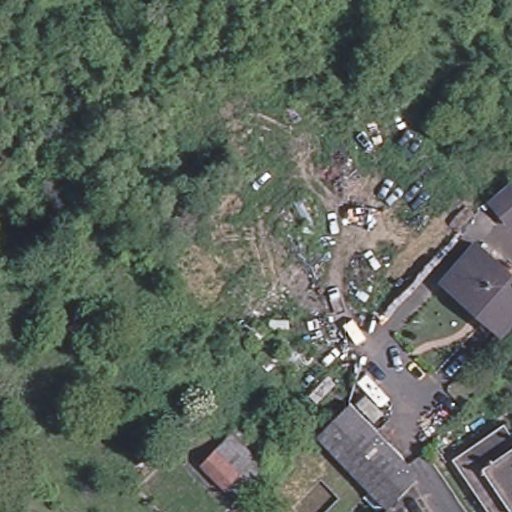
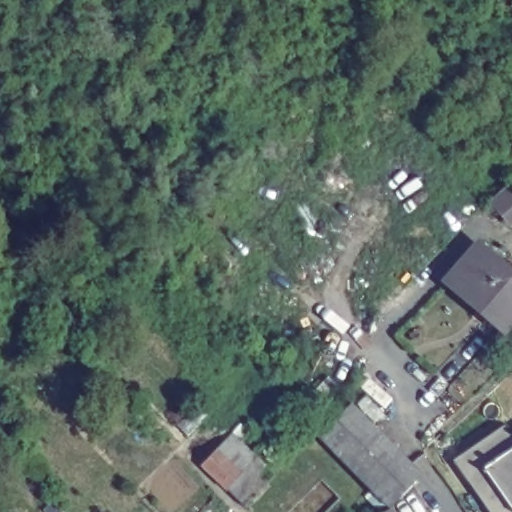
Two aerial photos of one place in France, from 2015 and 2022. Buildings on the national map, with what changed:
unchanged [(445,273),(453,264),(476,239),(512,272),(512,311),(503,320),(500,324),(445,273)]
unchanged [(402,454),(414,473),(385,502),(370,487),(367,484),(320,436),(315,431),(347,398),(399,449),(402,454)]
unchanged [(502,432),(512,425),(512,512),(481,512),(442,454),(493,419),(502,432)]
unchanged [(225,490),(202,467),(202,466),(215,452),(238,474),(242,478),(257,462),(268,473),(258,483),(265,489),(247,508),(245,509),(225,490)]
unchanged [(386,506),(389,512),(374,512),(386,506)]

